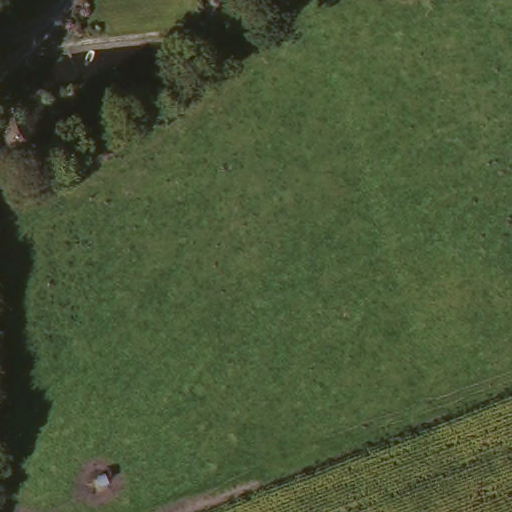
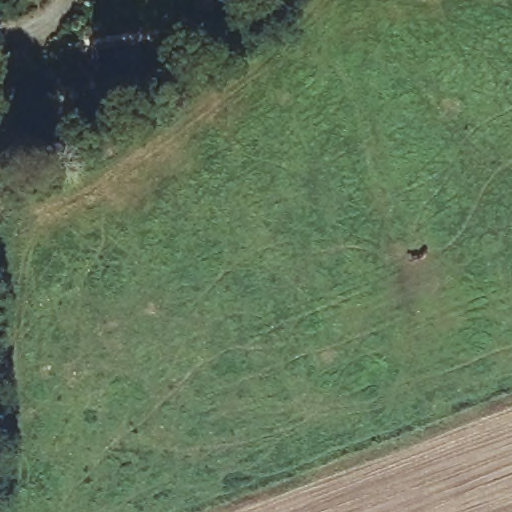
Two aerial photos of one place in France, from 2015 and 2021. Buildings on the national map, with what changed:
[]

